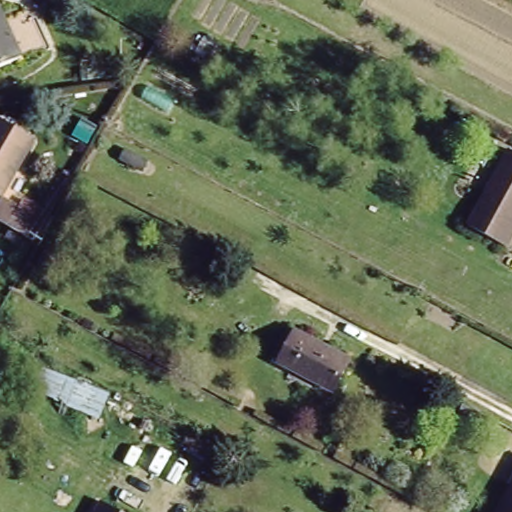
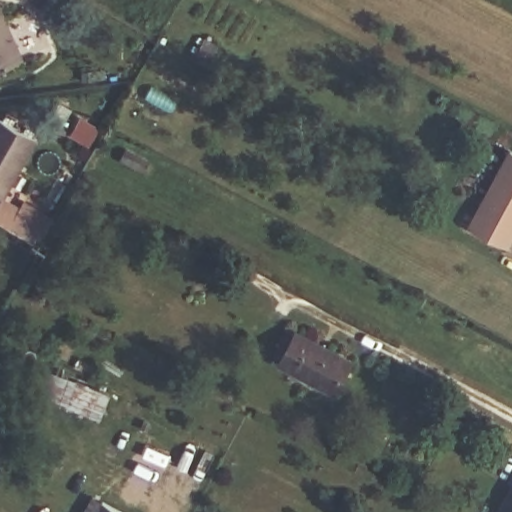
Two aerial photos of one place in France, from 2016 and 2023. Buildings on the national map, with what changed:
unchanged [(34,0),(44,0),(41,4),(34,0)]
unchanged [(20,49),(0,60),(0,15),(20,49)]
unchanged [(37,136),(1,194),(0,193),(0,113),(37,136)]
unchanged [(120,148),(141,160),(135,170),(114,157),(120,148)]
unchanged [(511,153),(512,151),(512,206),(489,194),(511,153)]
unchanged [(36,239),(4,220),(0,217),(0,196),(1,194),(16,203),(20,198),(50,216),(49,219),(47,221),(45,226),(36,239)]
unchanged [(475,220),(489,194),(512,206),(512,244),(510,249),(470,228),(475,220)]
unchanged [(297,370),(283,362),(284,360),(277,356),(288,337),(292,329),(298,332),(354,361),(350,369),(337,392),(297,370)]
unchanged [(100,416),(33,390),(42,367),(108,392),(100,416)]
unchanged [(512,489),(512,507),(504,503),(512,489)]
unchanged [(512,512),(499,512),(504,503),(512,507),(512,512)]
unchanged [(104,505),(117,512),(100,512),(104,505)]

